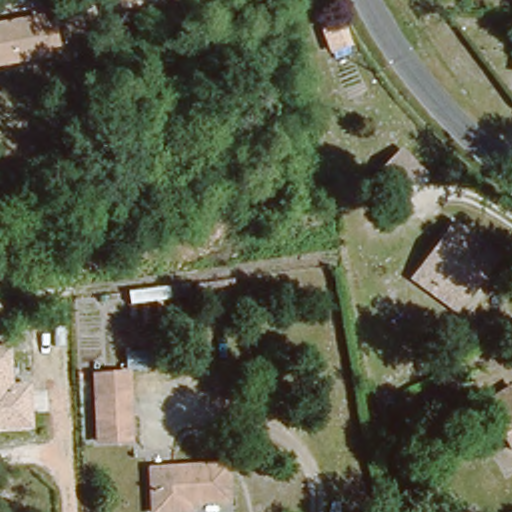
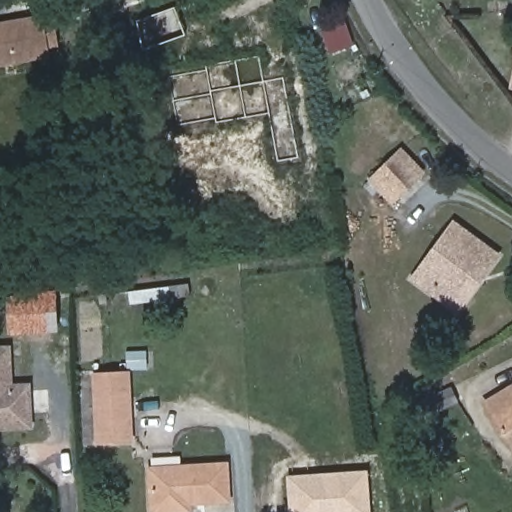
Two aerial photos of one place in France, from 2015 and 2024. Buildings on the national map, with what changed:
unchanged [(11,21),(12,26),(42,20),(42,23),(54,21),(57,40),(47,42),(48,51),(0,60),(0,24),(11,21)]
unchanged [(512,32),(512,53),(510,32),(512,32)]
unchanged [(378,187),(405,161),(422,180),(397,205),(378,187)]
unchanged [(453,303),(416,278),(449,227),(495,256),(483,273),(461,308),(453,303)]
unchanged [(12,346),(15,383),(30,382),(32,428),(0,430),(0,346),(12,346)]
unchanged [(122,375),(125,440),(99,441),(96,376),(122,375)]
unchanged [(508,385),(512,391),(512,445),(481,402),(508,385)]
unchanged [(222,496),(179,500),(180,507),(148,509),(144,465),(219,460),(222,496)]
new [(288,512),(287,475),(367,470),(371,512),(288,512)]

